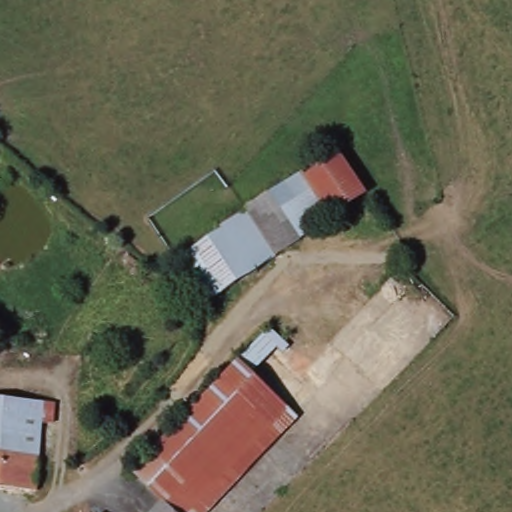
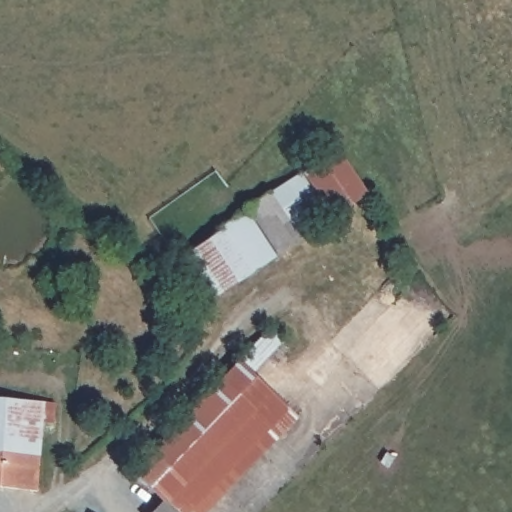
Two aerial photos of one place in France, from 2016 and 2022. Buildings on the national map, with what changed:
unchanged [(247,204),(269,190),(302,168),(303,170),(305,169),(337,147),(366,189),(333,211),(300,234),(277,250),(247,204)]
unchanged [(277,250),(224,287),(196,244),(222,227),(219,222),(247,204),(277,250)]
unchanged [(205,299),(177,257),(196,244),(224,287),(205,299)]
unchanged [(164,497),(133,467),(271,324),(325,376),(195,512),(180,512),(164,497)]
unchanged [(0,425),(0,394),(19,396),(16,426),(0,425)]
unchanged [(16,452),(11,452),(0,451),(0,425),(16,426),(19,396),(44,397),(39,452),(16,450),(16,452)]
unchanged [(0,482),(0,451),(11,452),(16,452),(16,450),(39,452),(37,487),(0,482)]
unchanged [(164,497),(180,512),(148,512),(164,497)]

